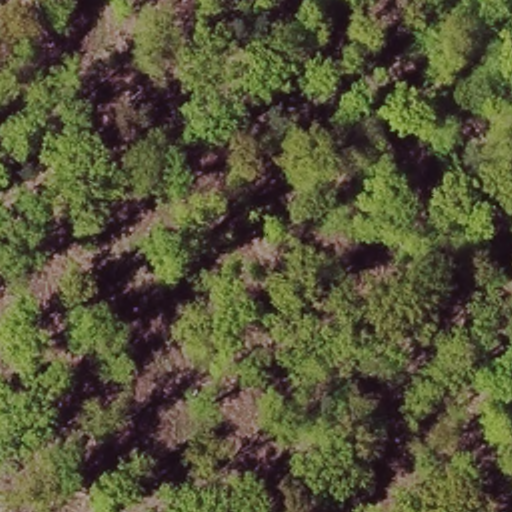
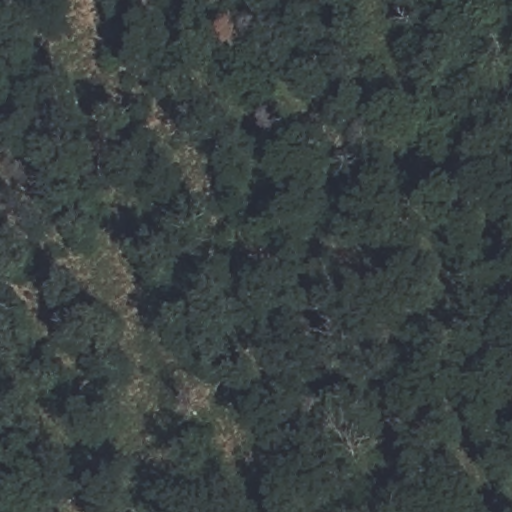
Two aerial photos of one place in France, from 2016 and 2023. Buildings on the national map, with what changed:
[]

